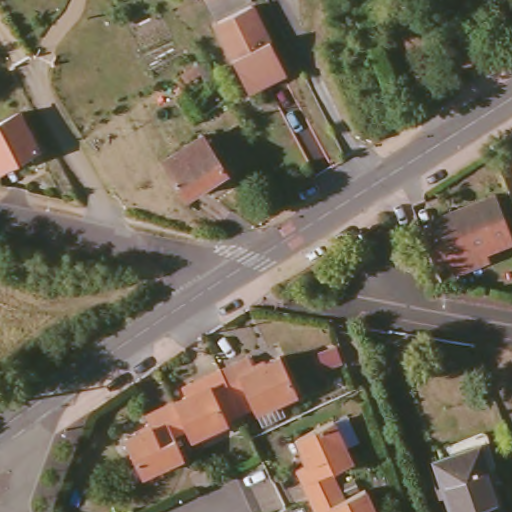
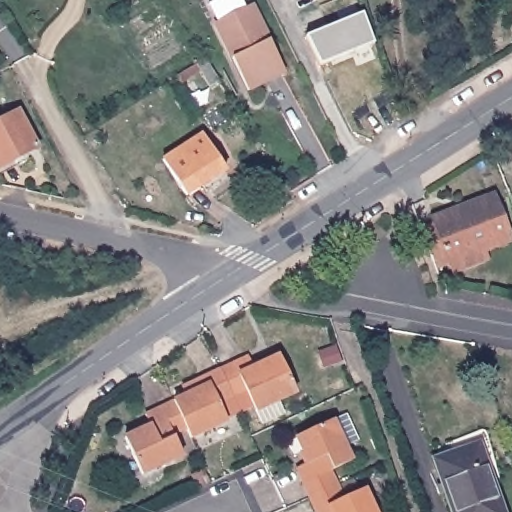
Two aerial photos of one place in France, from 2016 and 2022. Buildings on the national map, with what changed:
unchanged [(252,91),(235,60),(239,57),(233,45),(228,47),(217,24),(253,6),(288,72),(252,91)]
new [(365,11),(375,42),(323,66),(309,36),(365,11)]
unchanged [(211,87),(201,72),(182,83),(178,78),(209,59),(222,80),(211,87)]
unchanged [(0,123),(20,113),(39,148),(0,167),(0,123)]
unchanged [(188,197),(172,172),(164,160),(203,135),(227,171),(188,197)]
unchanged [(453,277),(450,269),(448,264),(435,270),(420,235),(435,229),(432,223),(493,199),(512,246),(485,256),(488,264),(453,277)]
unchanged [(408,243),(396,251),(390,241),(402,233),(408,243)]
unchanged [(217,372),(246,358),(251,369),(276,357),(292,394),(251,415),(241,392),(228,398),(217,372)]
unchanged [(228,398),(215,405),(223,424),(186,441),(182,432),(169,404),(182,398),(177,390),(217,372),(228,398)]
unchanged [(170,437),(179,458),(137,478),(120,441),(146,429),(141,417),(169,404),(182,432),(170,437)]
unchanged [(307,498),(295,471),(305,467),(292,439),(330,421),(348,463),(330,472),(335,486),(307,498)]
unchanged [(487,471),(502,512),(452,512),(435,462),(443,460),(439,449),(486,433),(497,467),(487,471)]
unchanged [(361,491),(371,512),(313,512),(307,498),(335,486),(342,500),(361,491)]

